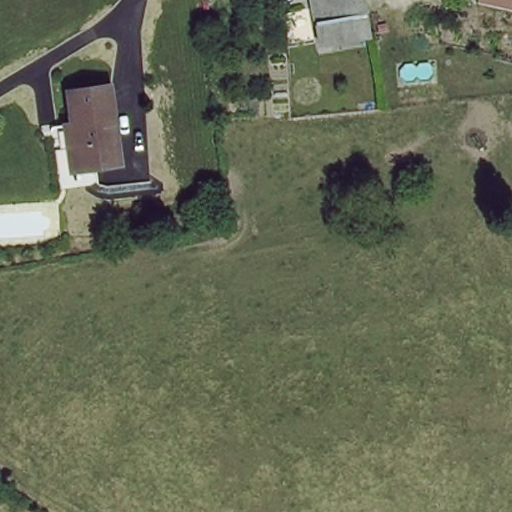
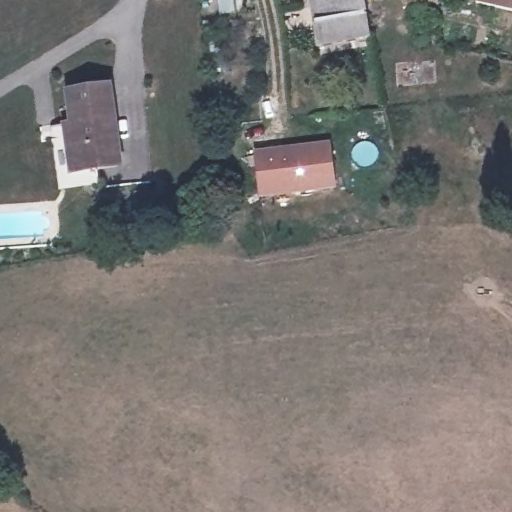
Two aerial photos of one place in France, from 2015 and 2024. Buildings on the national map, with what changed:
unchanged [(372,35),(323,43),(322,39),(315,0),(365,0),(368,14),(372,35)]
unchanged [(479,2),(479,0),(512,0),(512,9),(511,8),(479,2)]
unchanged [(114,159),(94,162),(72,165),(69,142),(73,141),(70,118),(72,118),(68,86),(110,80),(115,116),(113,117),(116,140),(118,159),(114,159)]
new [(332,140),(337,188),(259,196),(254,151),(332,140)]

